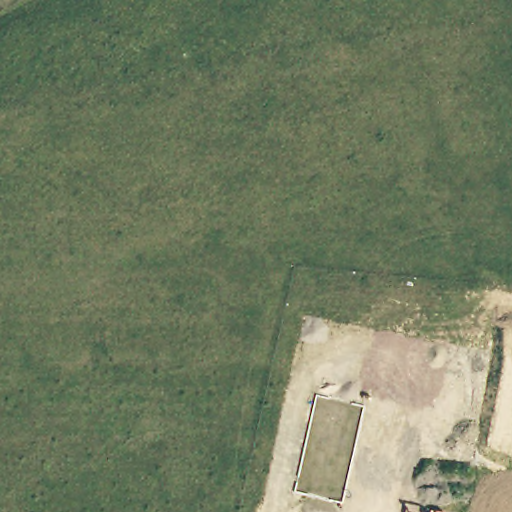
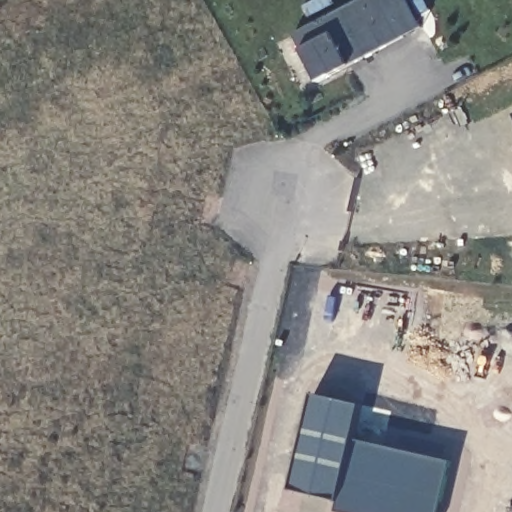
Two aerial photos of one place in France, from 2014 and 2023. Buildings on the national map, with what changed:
new [(408,0),(422,27),(351,64),(320,80),(303,49),(295,34),(360,0),(408,0)]
new [(355,441),(341,502),(293,491),(313,394),(362,406),(355,441)]
new [(443,512),(337,512),(341,502),(355,441),(455,461),(443,512)]

